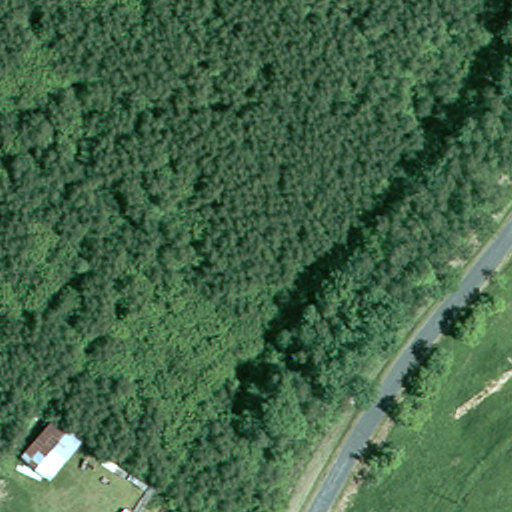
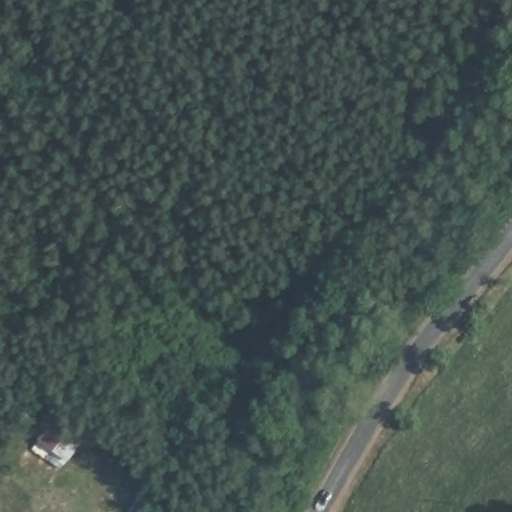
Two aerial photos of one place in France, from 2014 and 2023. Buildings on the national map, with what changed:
unchanged [(50,451),(35,468),(17,454),(49,420),(84,438),(66,460),(50,451)]

